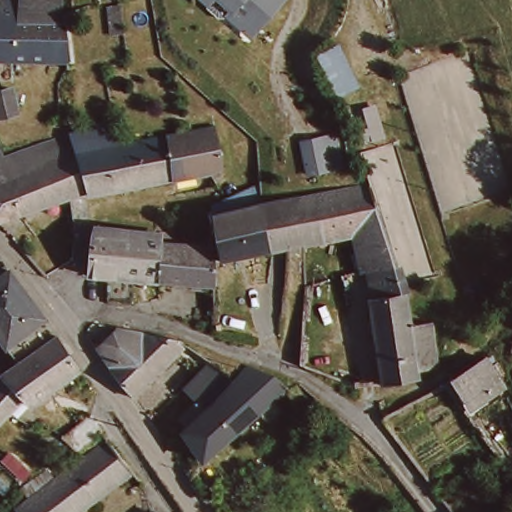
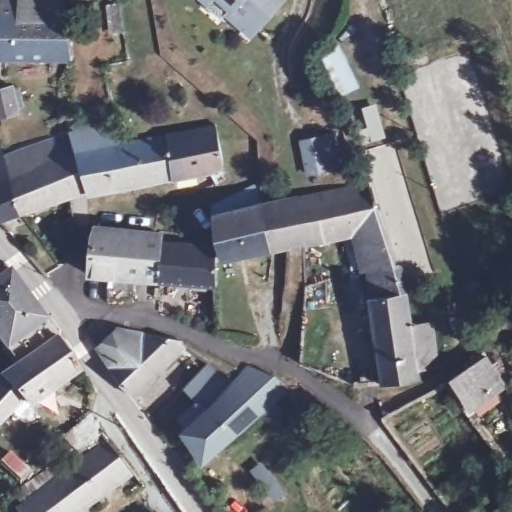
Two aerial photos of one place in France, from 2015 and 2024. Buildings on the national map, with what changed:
unchanged [(0,52),(0,0),(59,0),(59,5),(70,57),(12,52),(0,52)]
unchanged [(202,2),(200,0),(205,0),(202,2)]
unchanged [(276,4),(257,24),(253,21),(242,33),(222,15),(227,10),(215,0),(280,0),(276,4)]
unchanged [(352,86),(335,94),(319,58),(335,50),(352,86)]
unchanged [(10,114),(0,115),(0,90),(7,89),(10,114)]
unchanged [(169,180),(136,184),(117,188),(85,196),(72,135),(71,127),(115,121),(120,145),(165,138),(169,180)]
unchanged [(181,136),(211,133),(215,153),(219,169),(212,170),(212,174),(169,180),(165,138),(181,136)]
unchanged [(4,165),(72,135),(85,196),(22,219),(4,165)]
unchanged [(305,138),(327,135),(334,169),(312,173),(305,138)]
unchanged [(0,155),(4,165),(22,219),(0,226),(0,155)]
unchanged [(389,296),(389,292),(384,267),(361,271),(351,238),(321,242),(312,192),(314,192),(372,182),(377,181),(394,265),(405,283),(409,288),(416,323),(384,326),(380,297),(389,296)]
unchanged [(220,202),(267,184),(267,187),(270,200),(312,192),(321,242),(306,243),(221,257),(221,242),(220,202)]
unchanged [(170,280),(140,277),(139,298),(114,294),(115,275),(97,273),(97,237),(102,224),(123,224),(144,226),(170,230),(170,240),(170,280)]
unchanged [(221,267),(222,287),(170,280),(170,240),(187,241),(221,242),(221,257),(221,267)]
unchanged [(36,319),(37,322),(0,344),(0,272),(4,279),(7,277),(12,283),(36,319)]
unchanged [(416,323),(420,323),(430,321),(442,367),(424,372),(417,332),(385,335),(384,326),(416,323)]
unchanged [(425,379),(391,384),(385,335),(417,332),(424,372),(425,379)]
unchanged [(55,337),(69,367),(14,398),(10,394),(4,400),(0,404),(0,369),(54,336),(55,337)]
unchanged [(134,359),(155,382),(132,403),(120,387),(113,374),(107,361),(105,358),(127,337),(142,339),(156,339),(134,359)]
unchanged [(134,359),(156,339),(162,340),(174,341),(183,343),(192,347),(155,382),(134,359)]
unchanged [(502,388),(489,397),(496,409),(480,420),(454,378),(470,368),(481,360),(502,388)]
unchanged [(189,437),(180,429),(197,411),(185,399),(214,370),(234,386),(189,437)]
unchanged [(234,386),(245,373),(267,381),(283,397),(209,468),(190,449),(184,442),(189,437),(234,386)]
unchanged [(62,444),(55,430),(86,414),(93,428),(62,444)]
unchanged [(47,471),(55,481),(102,446),(132,477),(82,512),(16,512),(15,511),(29,502),(19,490),(22,488),(46,472),(47,471)]
unchanged [(3,455),(10,448),(27,464),(20,472),(3,455)]

